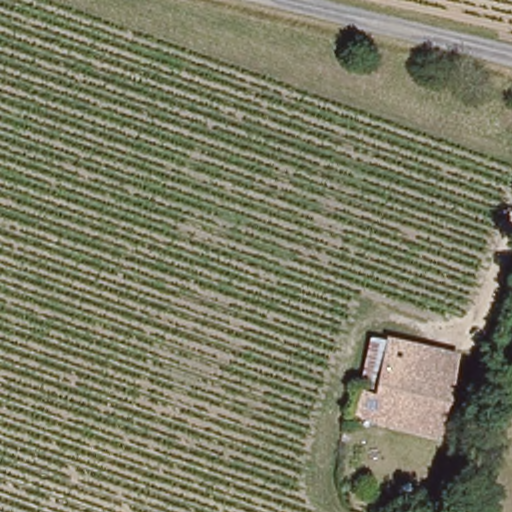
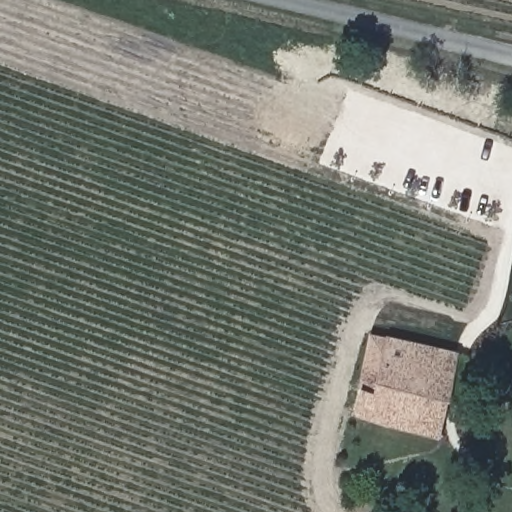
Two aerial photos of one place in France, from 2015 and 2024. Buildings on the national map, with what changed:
unchanged [(395,335),(380,390),(364,385),(369,372),(365,371),(376,331),(395,335)]
unchanged [(380,390),(395,335),(437,346),(423,397),(448,405),(441,433),(357,409),(364,385),(380,390)]
unchanged [(423,397),(437,346),(461,352),(448,405),(423,397)]

